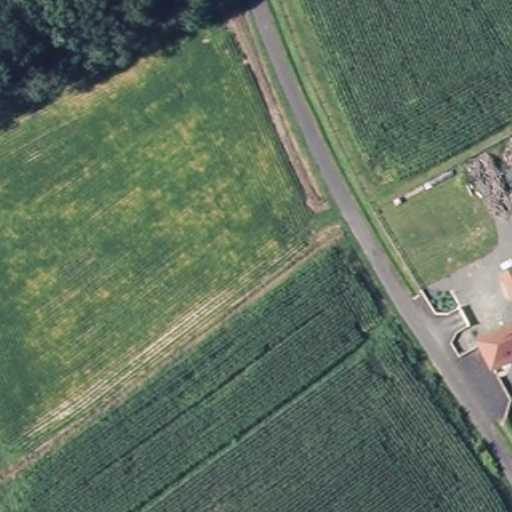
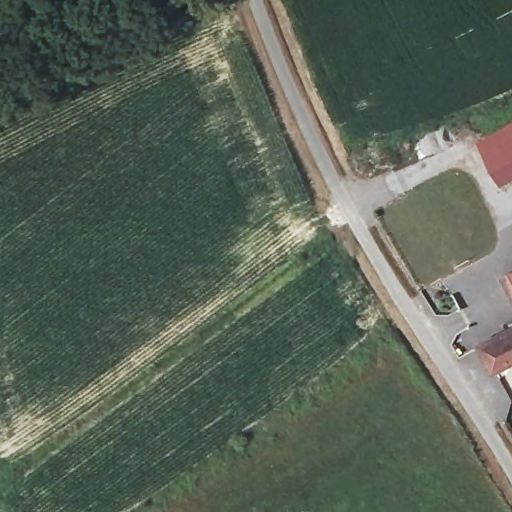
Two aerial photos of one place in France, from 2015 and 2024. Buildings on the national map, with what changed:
new [(512,180),(504,184),(481,141),(512,125),(512,180)]
unchanged [(512,271),(512,303),(499,278),(512,271)]
unchanged [(481,344),(512,328),(512,359),(494,368),(481,344)]

